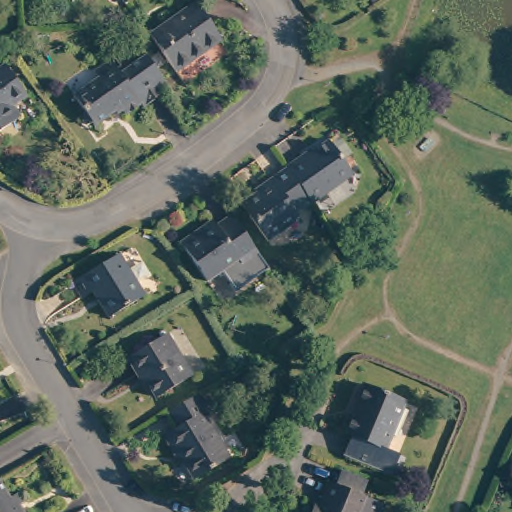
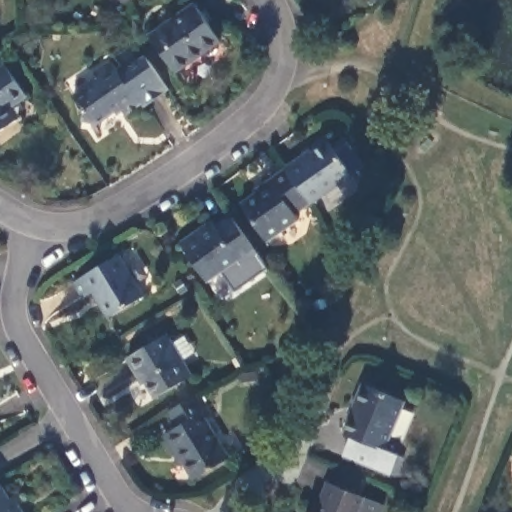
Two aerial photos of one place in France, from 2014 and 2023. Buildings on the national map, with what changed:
unchanged [(126,0),(127,0),(126,1),(126,0)]
unchanged [(180,70),(156,32),(202,2),(227,37),(180,70)]
unchanged [(118,77),(146,58),(169,92),(140,110),(138,106),(123,116),(118,110),(91,127),(89,126),(76,122),(79,110),(71,96),(96,79),(93,72),(109,62),(118,77)]
unchanged [(0,135),(0,74),(9,68),(30,97),(15,107),(23,120),(3,132),(0,135)]
unchanged [(307,152),(309,155),(335,137),(358,172),(317,201),(292,163),(307,152)]
unchanged [(317,201),(301,212),(305,217),(274,239),(247,198),(278,177),(276,175),(292,163),(317,201)]
unchanged [(255,255),(265,268),(231,292),(217,272),(203,282),(176,244),(194,231),(197,234),(210,225),(212,227),(227,216),(255,255)]
unchanged [(150,292),(117,312),(102,287),(90,294),(80,277),(125,250),(150,292)]
unchanged [(202,370),(165,392),(151,367),(147,370),(138,353),(177,330),(202,370)]
unchanged [(391,441),(404,447),(396,467),(351,448),(358,431),(351,427),(366,392),(363,390),(369,377),(411,394),(391,441)]
unchanged [(209,393),(222,413),(215,417),(240,457),(205,477),(188,448),(184,450),(175,433),(188,426),(178,412),(209,393)]
unchanged [(381,512),(316,512),(329,483),(335,486),(342,471),(362,479),(367,481),(363,496),(383,507),(381,512)]
unchanged [(14,488),(20,501),(29,496),(34,506),(29,508),(32,512),(0,512),(0,485),(9,480),(14,488)]

